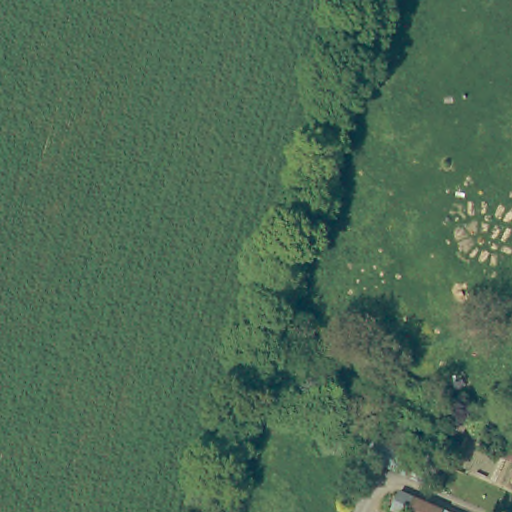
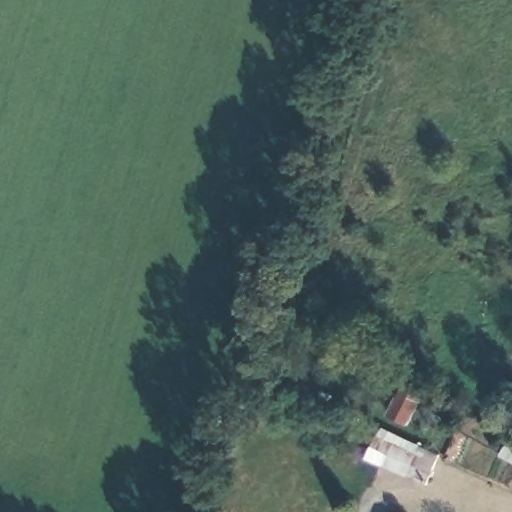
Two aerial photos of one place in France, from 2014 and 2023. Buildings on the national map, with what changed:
unchanged [(255,370),(251,367),(250,365),(253,362),(257,362),(262,363),(260,371),(255,370)]
unchanged [(420,487),(352,455),(360,435),(412,457),(417,446),(434,457),(420,487)]
unchanged [(512,444),(512,461),(499,453),(506,440),(512,444)]

